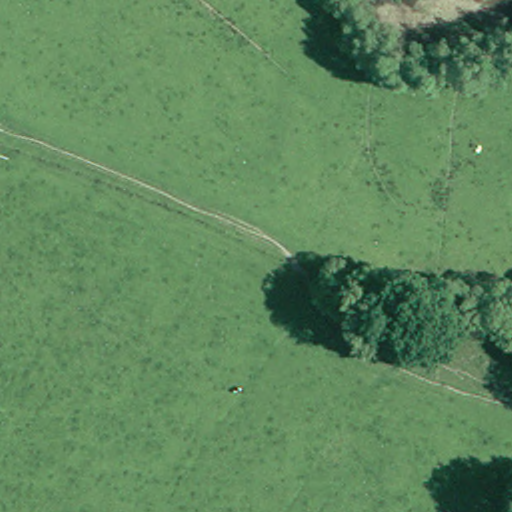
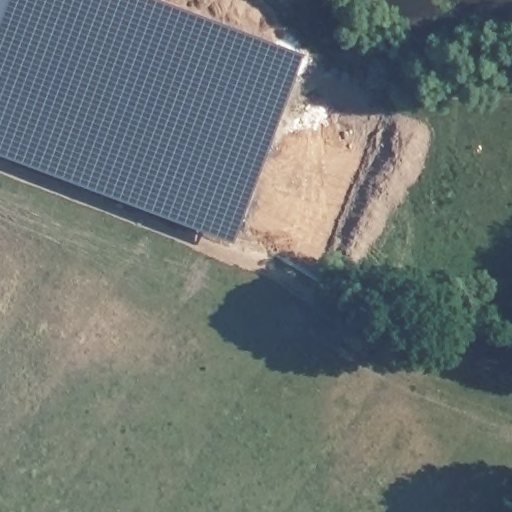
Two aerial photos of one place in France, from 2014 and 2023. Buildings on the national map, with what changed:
new [(79,0),(291,85),(236,225),(0,131),(0,0),(79,0)]
new [(291,85),(79,0),(138,0),(299,63),(291,85)]
new [(0,156),(0,131),(236,225),(227,245),(0,156)]

